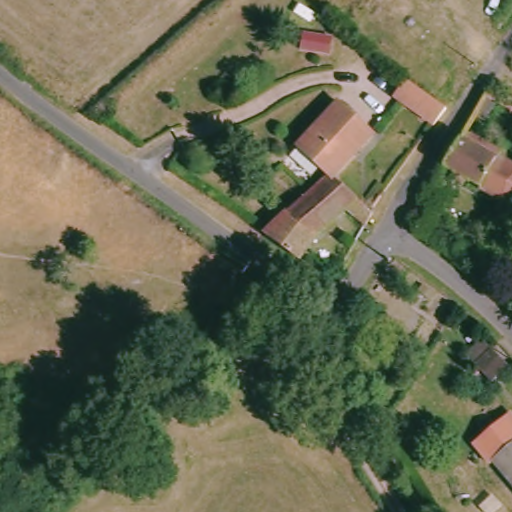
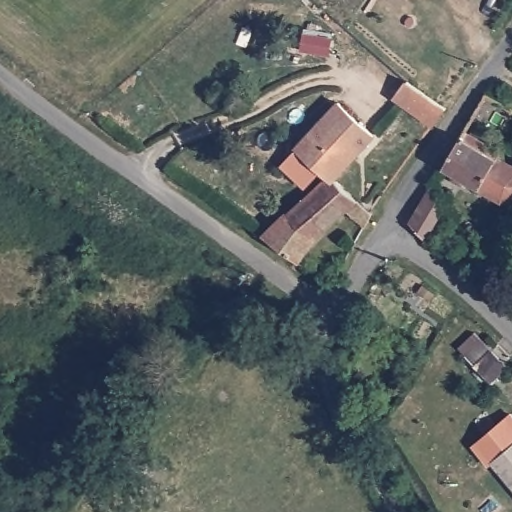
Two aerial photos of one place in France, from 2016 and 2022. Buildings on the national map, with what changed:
unchanged [(438,101),(424,120),(408,107),(404,91),(411,81),(438,101)]
unchanged [(489,112),(478,106),(489,89),(500,96),(489,112)]
unchanged [(290,142),(331,96),(373,133),(334,180),(323,170),(290,142)]
unchanged [(446,173),(436,167),(456,136),(508,166),(506,169),(512,172),(512,210),(511,210),(456,178),(452,184),(443,179),(446,173)]
unchanged [(323,170),(334,180),(370,211),(369,213),(361,225),(341,208),(296,252),(265,226),(323,170)]
unchanged [(445,192),(421,228),(406,215),(429,180),(445,192)]
unchanged [(483,379),(471,364),(492,346),(504,361),(483,379)]
unchanged [(489,469),(472,448),(512,415),(512,487),(493,466),(489,469)]

